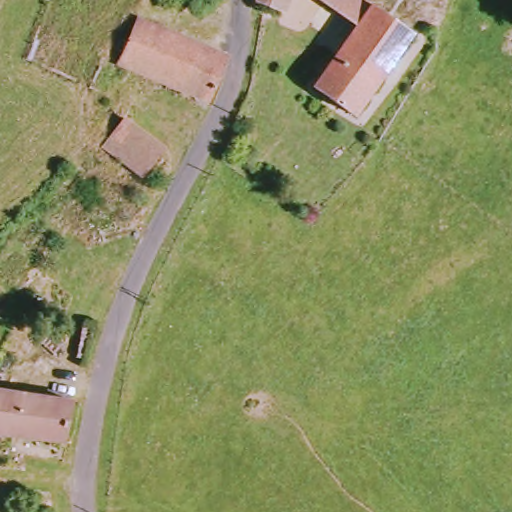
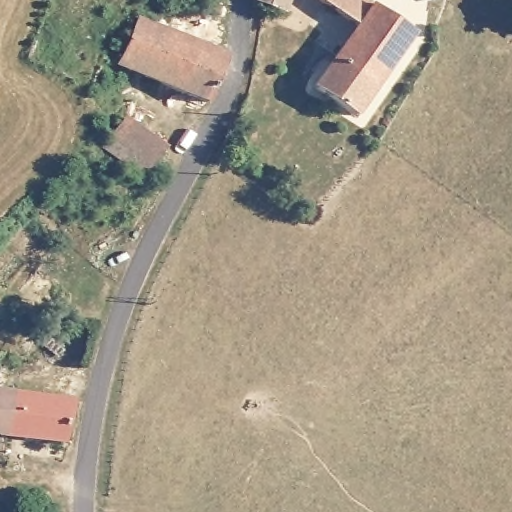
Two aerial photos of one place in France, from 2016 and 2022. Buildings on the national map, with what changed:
unchanged [(283,17),(280,15),(257,5),(258,0),(290,0),(283,17)]
unchanged [(423,35),(361,120),(319,90),(366,27),(328,0),(372,0),(423,35)]
unchanged [(122,67),(141,20),(227,60),(207,106),(122,67)]
unchanged [(107,147),(127,121),(164,152),(142,180),(107,147)]
unchanged [(69,442),(0,434),(0,392),(76,402),(69,442)]

